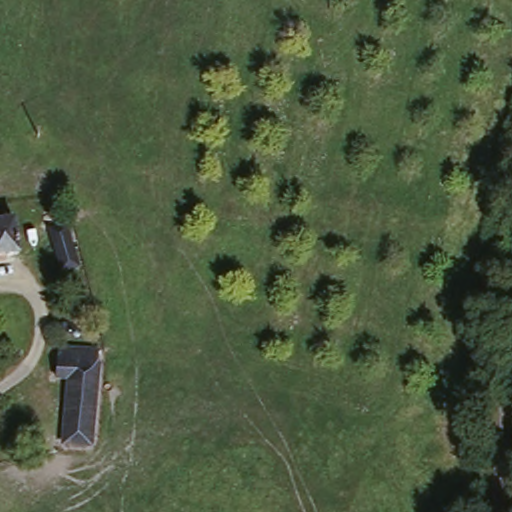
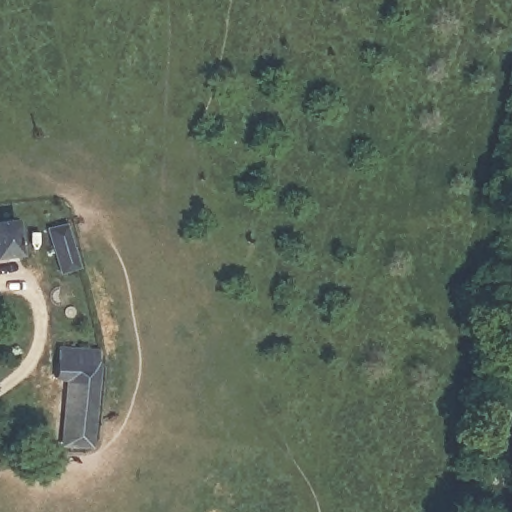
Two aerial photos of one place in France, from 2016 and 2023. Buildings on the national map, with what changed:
unchanged [(26,251),(0,255),(0,221),(19,219),(26,251)]
unchanged [(41,247),(64,239),(86,294),(63,303),(44,252),(41,247)]
unchanged [(68,386),(56,386),(56,351),(84,350),(83,362),(96,361),(98,446),(70,446),(68,386)]

